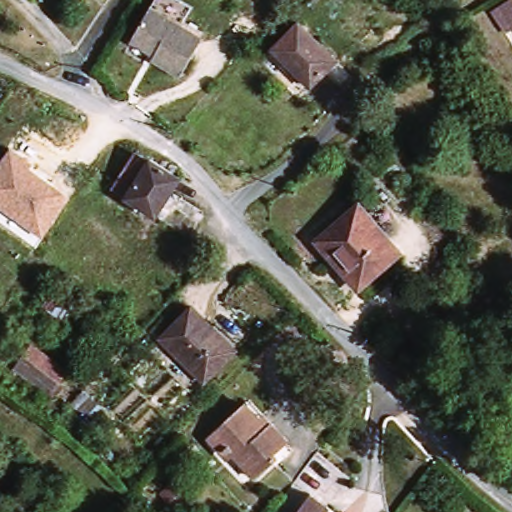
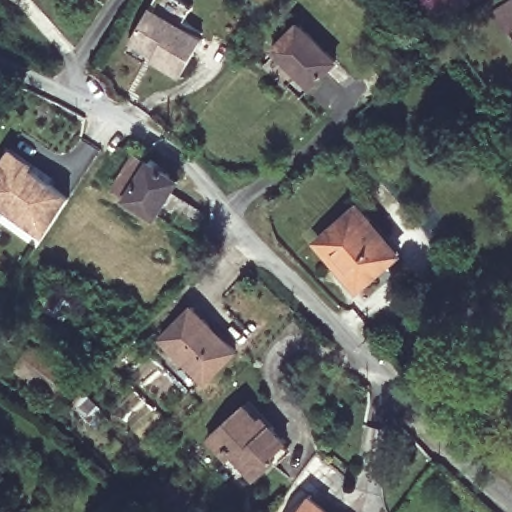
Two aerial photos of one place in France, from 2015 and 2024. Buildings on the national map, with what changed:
unchanged [(511,31),(498,10),(512,2),(512,31),(511,31)]
unchanged [(181,81),(154,64),(156,59),(133,45),(153,12),(204,45),(181,81)]
unchanged [(303,26),(343,64),(316,90),(280,51),(303,26)]
unchanged [(189,179),(161,219),(117,190),(131,170),(120,162),(128,146),(140,153),(144,150),(189,179)]
unchanged [(24,237),(0,220),(0,159),(9,147),(62,180),(24,237)]
unchanged [(409,250),(369,287),(327,244),(368,208),(409,250)]
unchanged [(248,353),(211,381),(175,335),(210,306),(248,353)]
unchanged [(71,401),(25,368),(41,345),(89,379),(84,385),(101,405),(90,418),(71,401)]
unchanged [(299,442),(288,452),(291,457),(267,477),(240,448),(232,456),(215,438),(260,398),(299,442)]
unchanged [(192,495),(181,511),(159,496),(175,474),(192,495)]
unchanged [(311,502),(320,491),(340,505),(338,508),(343,512),(304,512),(311,502)]

